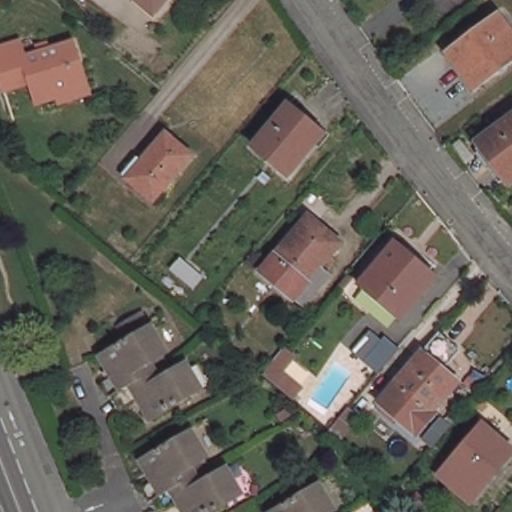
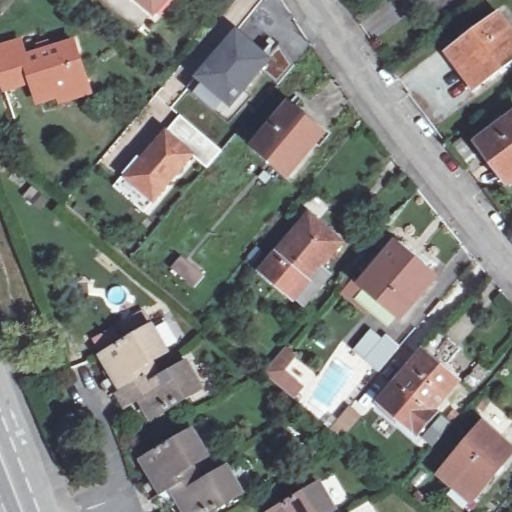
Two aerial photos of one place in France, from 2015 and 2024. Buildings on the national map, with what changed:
unchanged [(154,12),(140,0),(164,0),(154,12)]
unchanged [(512,35),(512,58),(473,87),(445,51),(496,13),(512,35)]
new [(195,79),(237,29),(270,57),(280,46),(292,66),(279,82),(263,70),(245,93),(251,98),(230,124),(187,87),(195,79)]
unchanged [(62,101),(60,96),(38,102),(32,81),(4,89),(0,75),(0,47),(20,41),(25,57),(75,43),(87,84),(90,93),(62,101)]
unchanged [(288,106),(324,135),(290,175),(254,145),(288,106)]
unchanged [(512,181),(510,182),(480,141),(512,117),(512,181)]
unchanged [(119,189),(127,178),(167,132),(195,156),(155,202),(147,212),(119,189)]
unchanged [(293,232),(298,236),(313,220),(340,242),(320,267),(330,275),(304,306),(262,270),(293,232)]
unchanged [(362,280),(395,240),(435,275),(402,315),(362,280)]
unchanged [(182,257),(205,276),(188,295),(165,275),(182,257)]
unchanged [(151,321),(153,320),(169,347),(152,357),(162,373),(187,358),(202,385),(152,414),(140,392),(123,401),(116,388),(110,392),(103,379),(115,372),(102,350),(127,335),(120,321),(143,308),(151,321)]
unchanged [(381,365),(379,367),(365,355),(387,330),(400,342),(381,365)]
unchanged [(423,346),(458,375),(433,404),(437,407),(418,430),(380,397),(423,346)]
unchanged [(285,348),(295,357),(283,372),(272,363),(285,348)]
unchanged [(350,402),(362,412),(344,433),(332,423),(350,402)]
unchanged [(512,448),(512,456),(476,498),(457,482),(453,486),(440,475),(483,423),(512,448)]
unchanged [(198,462),(207,477),(233,463),(248,490),(209,512),(194,512),(185,498),(169,506),(161,493),(155,496),(148,483),(160,476),(147,455),(198,425),(214,453),(198,462)]
unchanged [(326,512),(272,512),(270,508),(320,479),(336,506),(326,512)]

